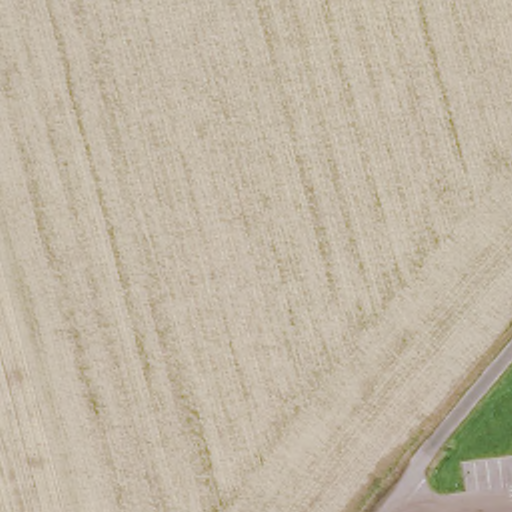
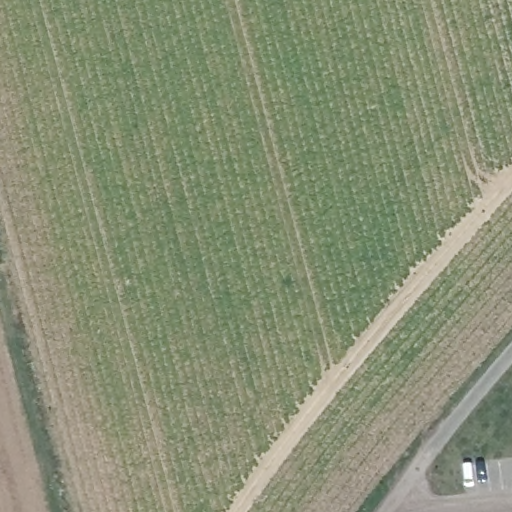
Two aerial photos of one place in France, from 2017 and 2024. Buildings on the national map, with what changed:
[]

